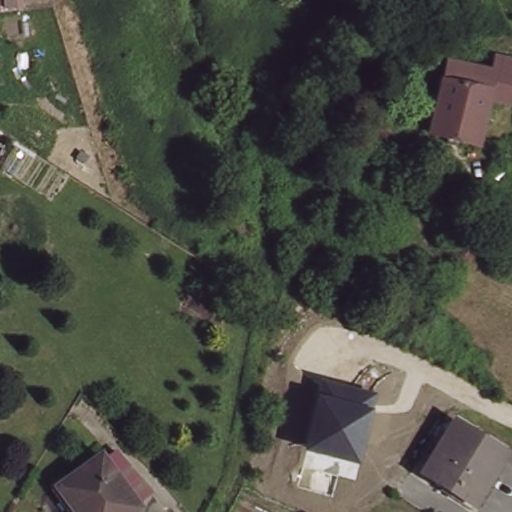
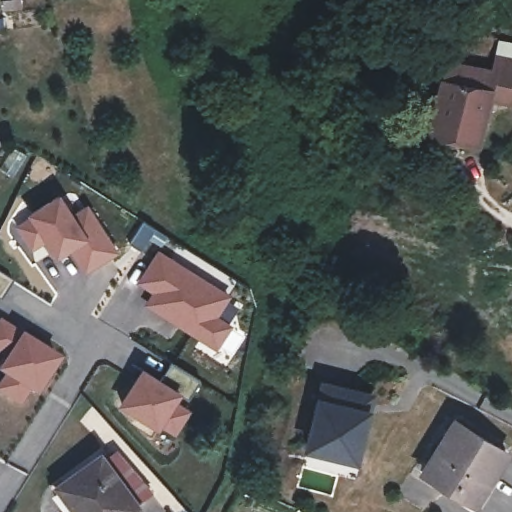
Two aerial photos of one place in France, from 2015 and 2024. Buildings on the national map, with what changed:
unchanged [(477,145),(429,133),(446,61),(493,71),(497,58),(512,60),(512,89),(509,103),(489,98),(477,145)]
new [(85,274),(68,249),(56,258),(42,238),(31,251),(14,226),(27,213),(60,193),(72,210),(88,204),(120,253),(85,274)]
new [(151,293),(136,283),(157,249),(231,295),(219,316),(232,326),(217,352),(143,305),(151,293)]
new [(26,389),(21,406),(0,393),(0,358),(2,355),(0,354),(0,320),(19,331),(61,357),(34,394),(26,389)]
new [(142,366),(160,378),(171,364),(200,381),(189,398),(180,394),(176,401),(191,411),(176,436),(159,430),(117,406),(142,366)]
unchanged [(375,392),(370,410),(357,463),(303,449),(317,395),(322,380),(375,392)]
unchanged [(429,467),(460,416),(512,447),(480,498),(429,467)]
unchanged [(130,512),(77,512),(58,485),(101,454),(104,459),(117,453),(151,491),(136,503),(138,506),(130,512)]

